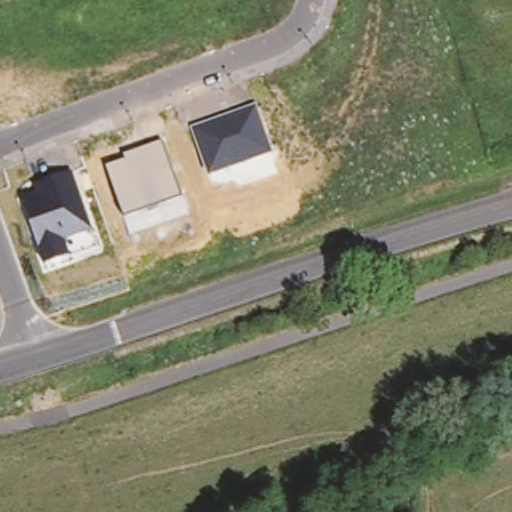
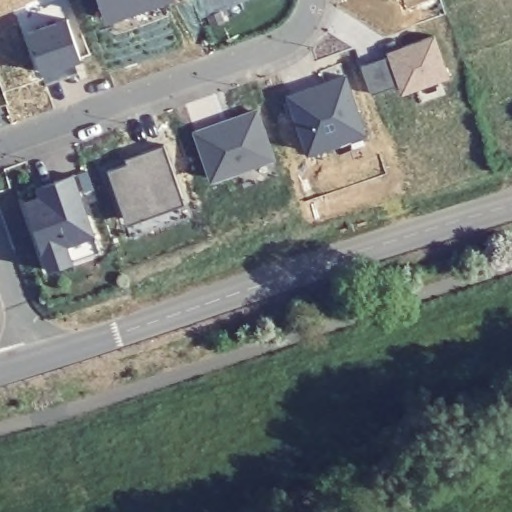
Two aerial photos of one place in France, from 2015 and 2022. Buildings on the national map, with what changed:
new [(98,0),(161,0),(141,7),(129,11),(105,20),(98,0)]
new [(81,60),(78,74),(45,86),(40,73),(25,32),(66,18),(81,60)]
new [(451,75),(401,93),(398,84),(371,93),(361,64),(387,56),(385,50),(434,33),(451,75)]
new [(310,158),(308,153),(287,97),(344,76),(364,133),(338,142),(340,148),(310,158)]
unchanged [(192,130),(257,107),(274,157),(209,180),(192,130)]
unchanged [(108,170),(128,162),(126,157),(164,144),(183,201),(126,222),(108,170)]
unchanged [(24,198),(39,193),(36,184),(73,171),(94,235),(68,244),(73,260),(47,269),(24,198)]

